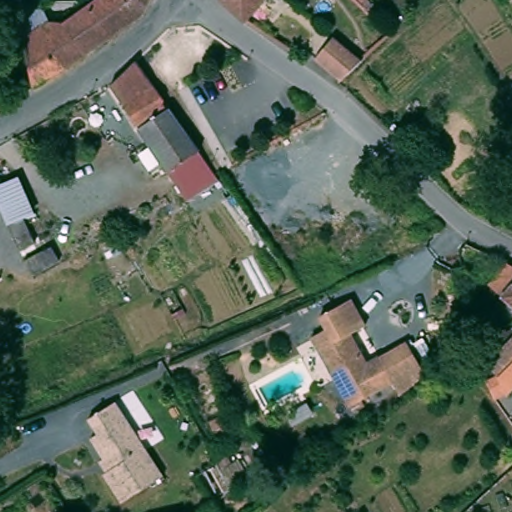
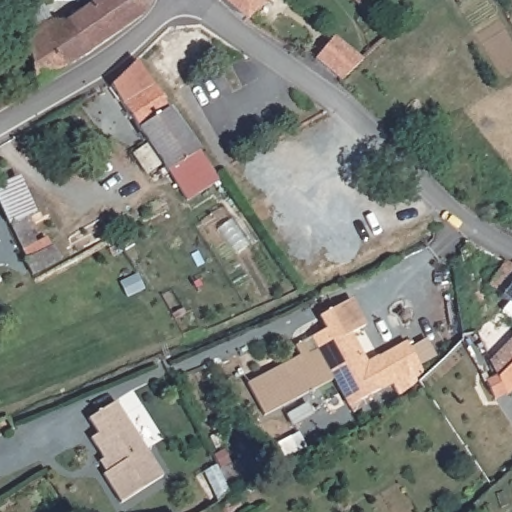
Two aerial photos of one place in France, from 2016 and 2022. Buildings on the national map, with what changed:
unchanged [(31,79),(24,44),(14,0),(37,0),(50,27),(62,19),(84,51),(59,66),(32,81),(31,79)]
unchanged [(141,11),(110,33),(84,51),(62,19),(92,0),(147,0),(141,11)]
unchanged [(243,20),(219,0),(261,0),(243,20)]
unchanged [(378,21),(388,31),(378,41),(368,31),(378,21)]
unchanged [(365,59),(358,65),(354,69),(345,77),(322,53),(341,34),(365,59)]
unchanged [(138,61),(214,175),(184,195),(107,81),(138,61)]
unchanged [(0,183),(19,175),(34,211),(8,223),(0,203),(0,183)]
unchanged [(489,288),(502,261),(512,266),(512,307),(499,295),(489,288)]
unchanged [(421,374),(417,378),(395,392),(389,378),(345,398),(311,327),(327,320),(321,307),(353,292),(366,320),(350,327),(364,358),(377,352),(405,339),(421,374)]
new [(263,415),(247,384),(300,357),(294,346),(315,336),(336,379),(263,415)]
unchanged [(505,393),(495,378),(488,361),(512,336),(512,386),(505,393)]
unchanged [(96,434),(103,430),(92,416),(120,398),(170,471),(128,498),(110,470),(113,468),(105,457),(110,454),(96,434)]
unchanged [(11,432),(0,437),(0,421),(6,418),(11,432)]
demolished [(218,512),(200,512),(213,505),(218,512)]

